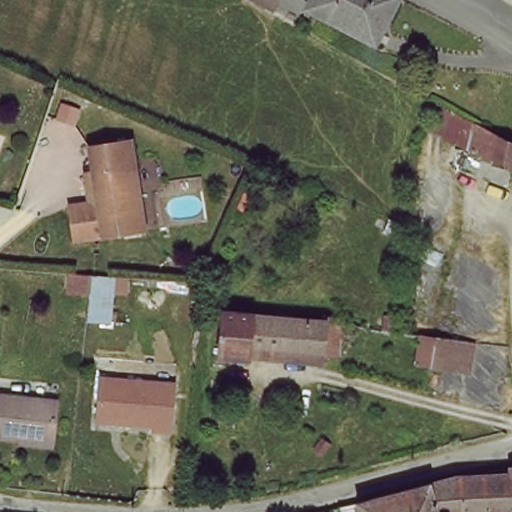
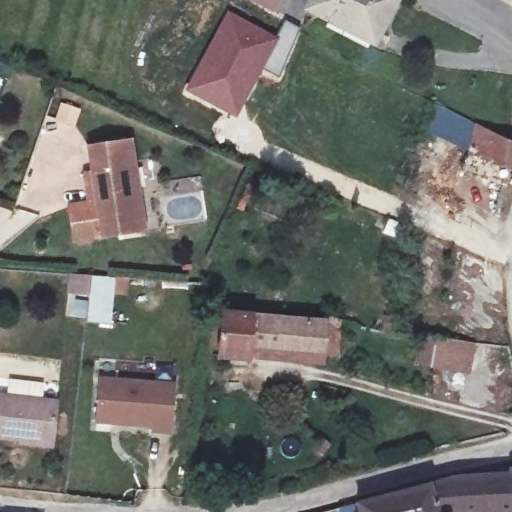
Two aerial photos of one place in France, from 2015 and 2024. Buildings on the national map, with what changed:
unchanged [(278,0),(277,4),(270,0),(278,0)]
unchanged [(311,2),(312,0),(396,0),(383,26),(378,37),(362,30),(311,2)]
new [(284,21),(300,29),(279,77),(263,70),(237,120),(183,91),(227,10),(277,36),(284,21)]
unchanged [(470,161),(437,143),(445,112),(481,135),(470,161)]
unchanged [(481,135),(491,141),(512,152),(512,178),(510,180),(502,176),(492,170),(470,161),(481,135)]
unchanged [(75,229),(72,206),(92,203),(89,174),(97,172),(93,147),(135,141),(147,230),(100,237),(77,240),(75,229)]
unchanged [(62,291),(67,274),(88,275),(112,276),(107,323),(85,321),(87,293),(62,291)]
unchanged [(247,357),(218,355),(222,311),(325,319),(327,315),(333,315),(340,315),(335,357),(335,365),(247,357)]
unchanged [(442,341),(447,342),(456,344),(468,345),(467,371),(422,369),(430,339),(442,341)]
unchanged [(175,384),(173,430),(155,430),(155,424),(102,421),(105,380),(175,384)]
unchanged [(53,441),(0,437),(0,396),(57,401),(53,441)]
unchanged [(358,496),(375,492),(377,491),(387,488),(397,487),(430,478),(472,466),(481,465),(493,465),(512,464),(512,505),(495,505),(470,505),(465,505),(467,507),(467,508),(468,509),(468,510),(467,512),(362,512),(358,496)]

